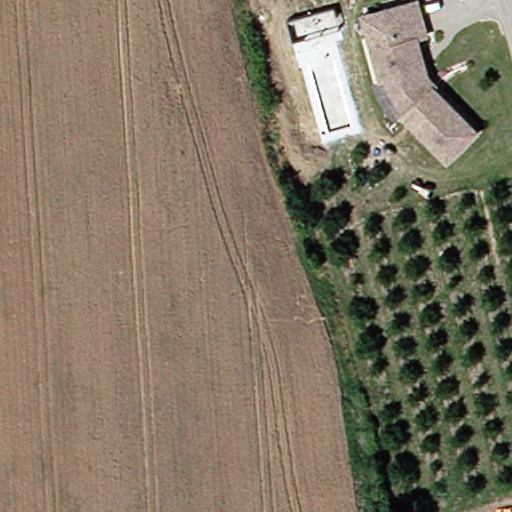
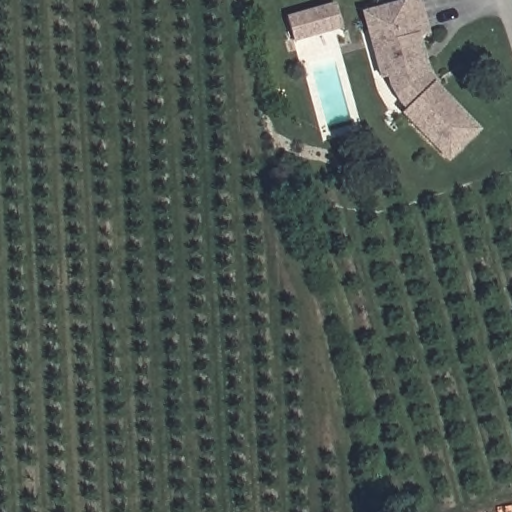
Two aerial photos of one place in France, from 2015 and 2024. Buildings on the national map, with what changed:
new [(336,3),(343,30),(295,44),(287,16),(336,3)]
unchanged [(427,39),(418,41),(428,80),(436,89),(434,91),(477,136),(448,165),(403,120),(408,115),(399,108),(392,91),(388,81),(382,83),(373,52),(364,19),(382,14),(418,4),(427,39)]

